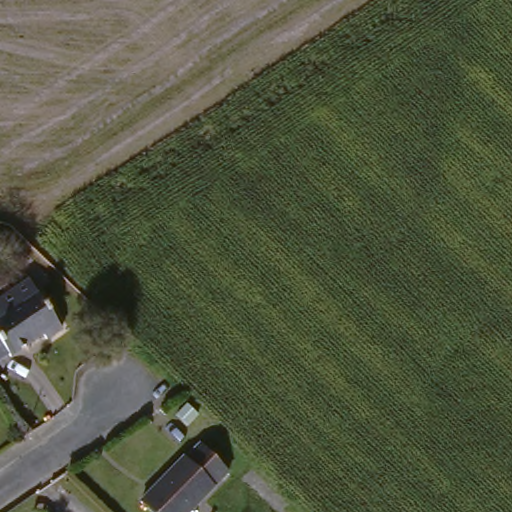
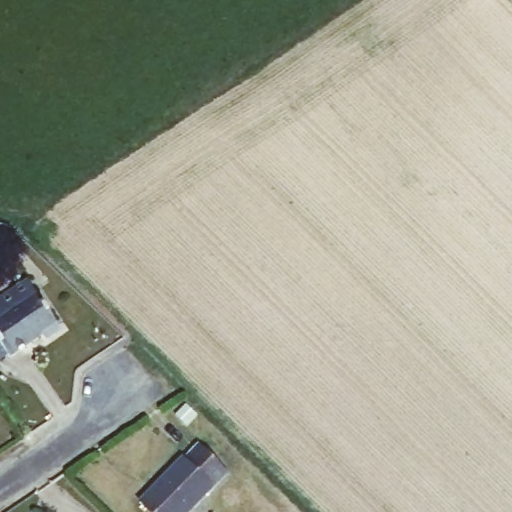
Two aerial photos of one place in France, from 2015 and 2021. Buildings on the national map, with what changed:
unchanged [(39,288),(67,335),(52,346),(47,341),(16,363),(14,360),(0,368),(0,311),(39,288)]
unchanged [(175,462),(182,460),(193,448),(220,474),(200,496),(185,512),(144,512),(136,505),(175,462)]

